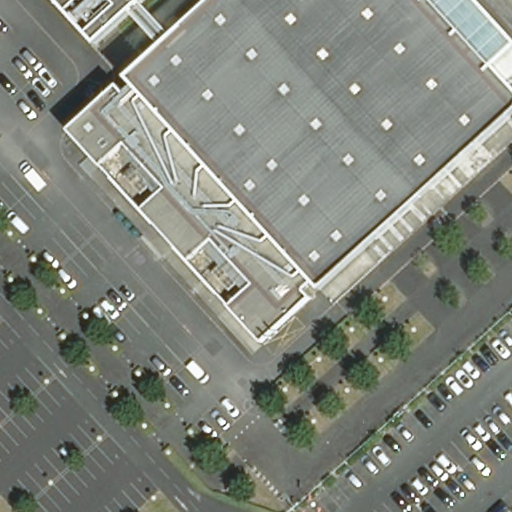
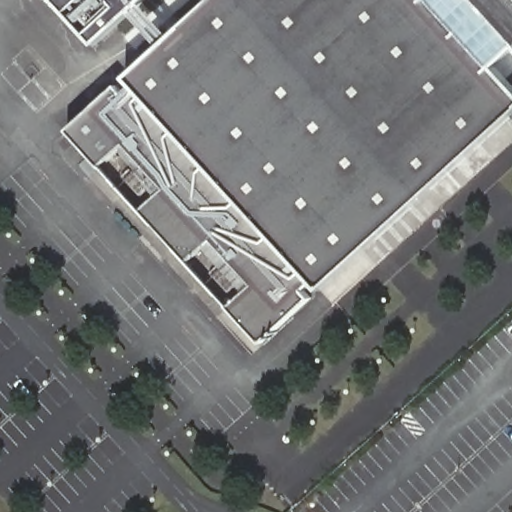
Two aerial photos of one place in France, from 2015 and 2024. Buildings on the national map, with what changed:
unchanged [(89,38),(54,0),(75,0),(101,28),(89,38)]
unchanged [(127,98),(136,90),(129,83),(220,0),(512,0),(512,59),(498,72),(512,88),(512,122),(322,294),(316,287),(308,295),(314,302),(303,312),(264,347),(72,135),(110,100),(120,91),(127,98)]
unchanged [(89,38),(101,28),(75,0),(153,0),(99,49),(89,38)]

